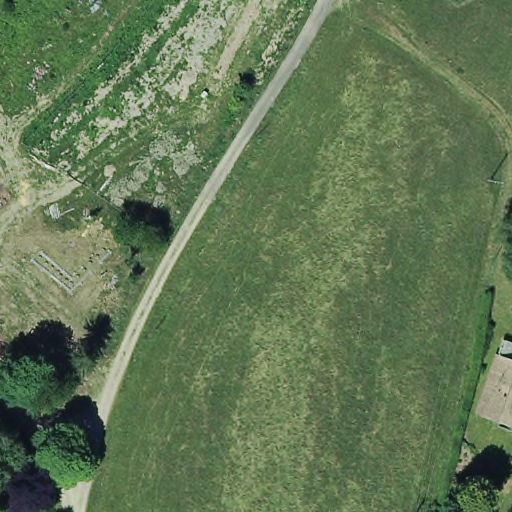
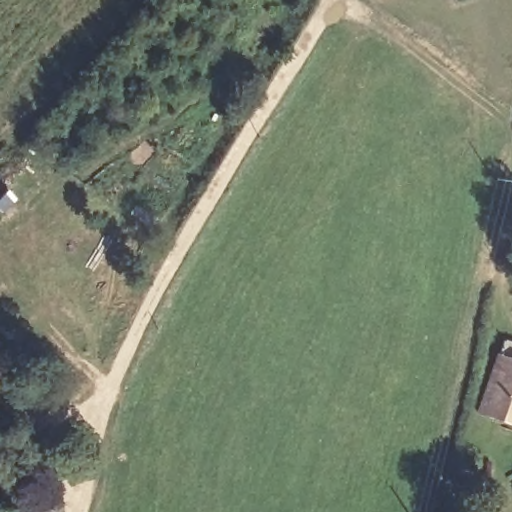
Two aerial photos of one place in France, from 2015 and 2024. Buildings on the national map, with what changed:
unchanged [(484,408),(511,332),(512,333),(512,418),(484,408)]

